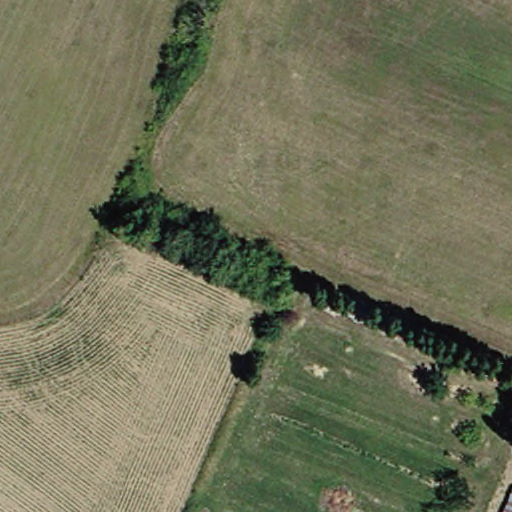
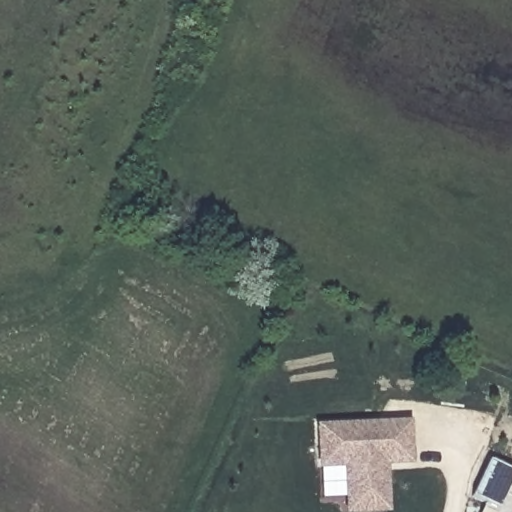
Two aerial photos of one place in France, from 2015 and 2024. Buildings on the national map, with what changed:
new [(339,469),(314,471),(313,459),(312,432),(402,427),(403,467),(378,468),(380,497),(380,512),(341,512),(341,505),(339,469)]
new [(487,462),(512,474),(512,479),(497,510),(471,497),(487,462)]
demolished [(507,512),(512,500),(512,512),(507,512)]

